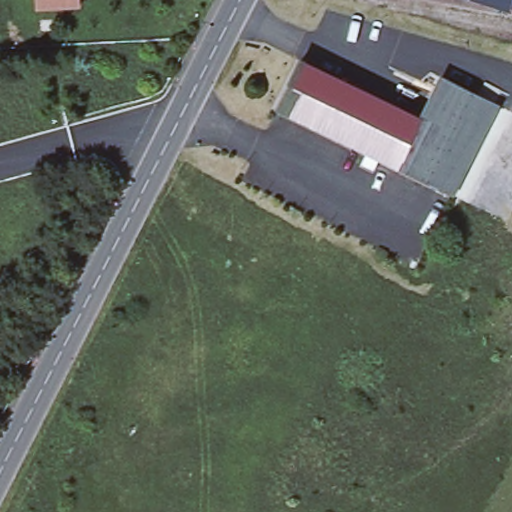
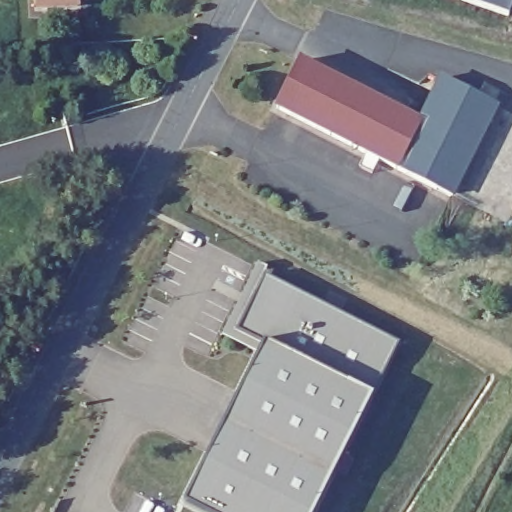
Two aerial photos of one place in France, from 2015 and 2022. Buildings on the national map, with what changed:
unchanged [(40,10),(40,0),(81,0),(81,7),(40,10)]
unchanged [(469,0),(512,0),(512,14),(469,0)]
unchanged [(355,160),(361,146),(274,104),(298,56),(420,116),(395,164),(377,155),(370,167),(355,160)]
unchanged [(440,76),(500,104),(453,191),(395,164),(420,116),(440,76)]
new [(268,266),(265,275),(400,341),(374,395),(315,512),(201,512),(183,503),(257,355),(222,335),(258,262),(268,266)]

